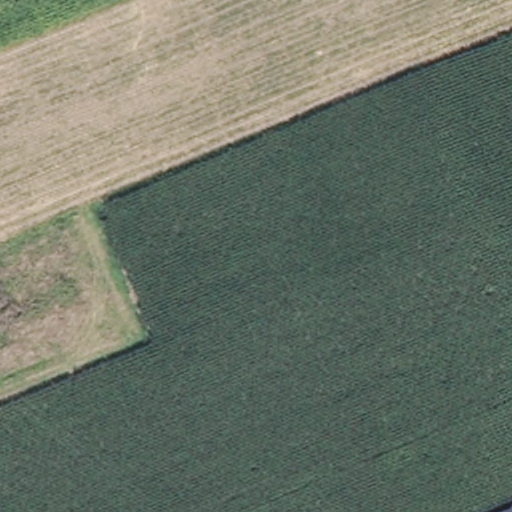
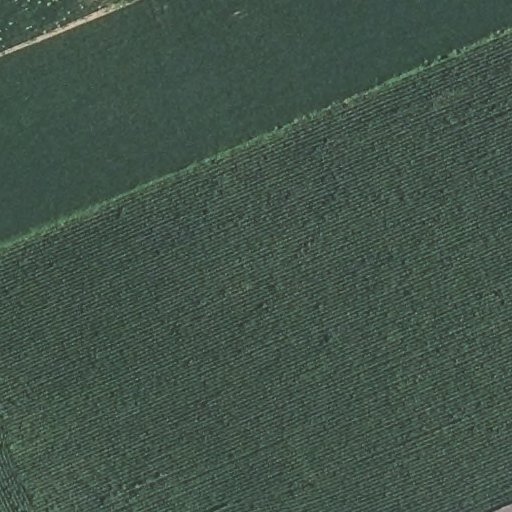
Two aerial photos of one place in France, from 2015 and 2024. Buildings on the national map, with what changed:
unchanged [(512,507),(512,512),(499,512),(512,507)]

